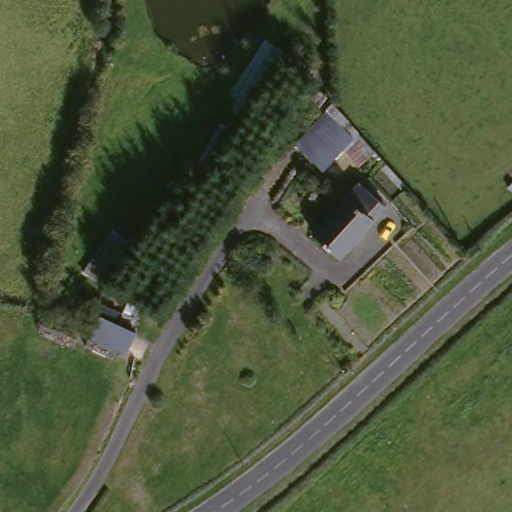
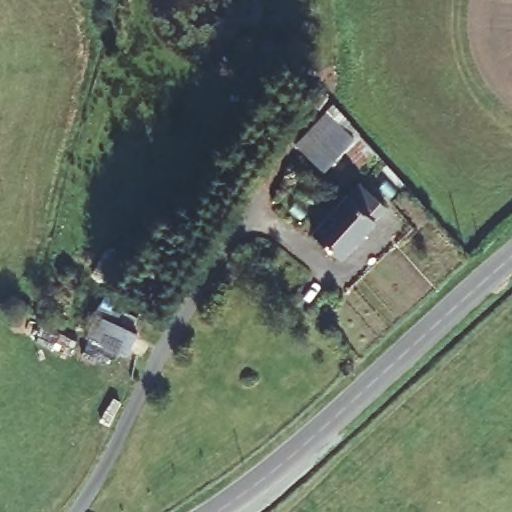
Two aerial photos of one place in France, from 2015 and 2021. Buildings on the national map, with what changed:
unchanged [(325,120),(346,138),(317,169),(304,157),(312,147),(308,142),(325,120)]
unchanged [(314,234),(359,184),(387,209),(340,259),(314,234)]
unchanged [(121,362),(80,344),(98,316),(138,331),(121,362)]

